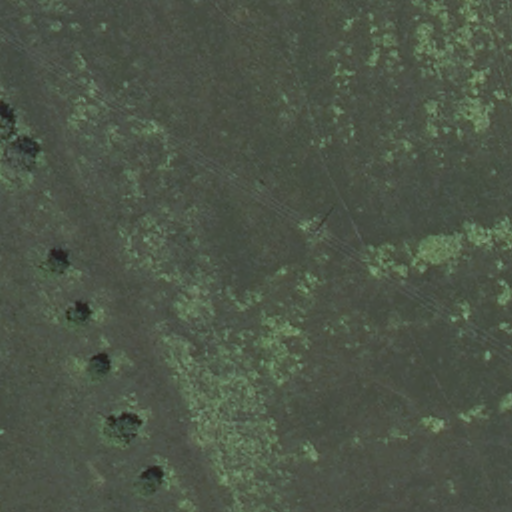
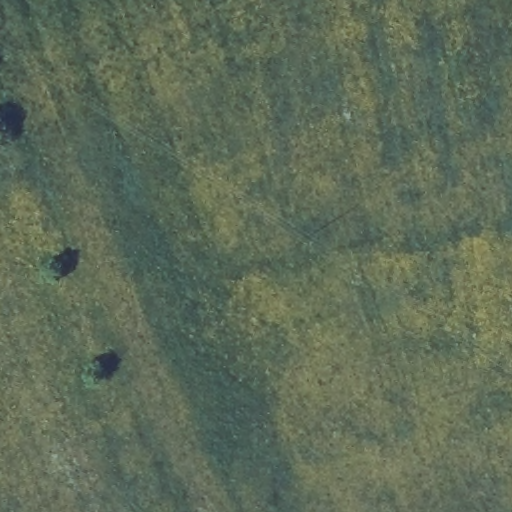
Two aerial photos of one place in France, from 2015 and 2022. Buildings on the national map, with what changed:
[]

